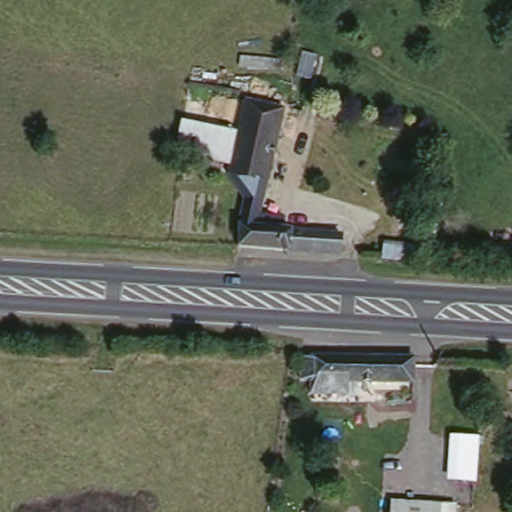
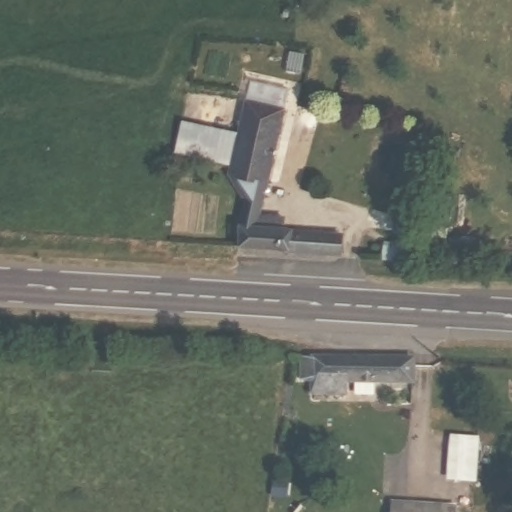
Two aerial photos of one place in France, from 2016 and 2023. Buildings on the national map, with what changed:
unchanged [(288,75),(285,94),(258,90),(260,74),(288,75)]
unchanged [(280,110),(263,207),(288,210),(289,227),(339,233),(339,256),(297,253),(235,246),(244,200),(228,180),(244,102),(280,110)]
unchanged [(232,161),(177,149),(182,115),(239,127),(232,161)]
unchanged [(415,360),(414,386),(350,382),(350,391),(317,388),(317,379),(304,378),(305,355),(415,360)]
unchanged [(485,360),(483,381),(458,380),(460,357),(485,360)]
unchanged [(480,440),(479,482),(459,481),(461,438),(480,440)]
unchanged [(437,512),(388,512),(389,498),(438,502),(437,512)]

